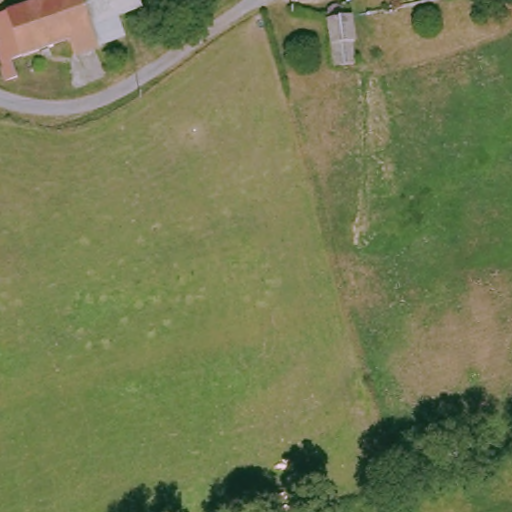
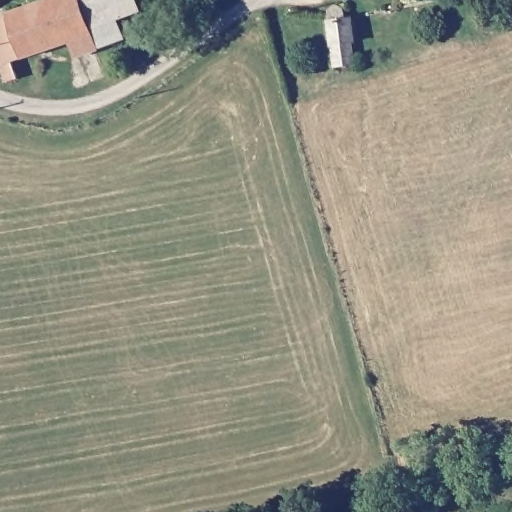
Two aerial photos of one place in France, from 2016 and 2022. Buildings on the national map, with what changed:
unchanged [(115,24),(119,39),(72,54),(68,38),(7,57),(12,73),(1,76),(0,73),(0,12),(40,0),(81,0),(91,31),(115,24)]
unchanged [(115,24),(91,31),(81,0),(134,0),(138,18),(115,24)]
unchanged [(345,15),(347,25),(350,25),(355,25),(356,48),(350,49),(350,72),(331,74),(329,15),(333,11),(341,11),(345,15)]

